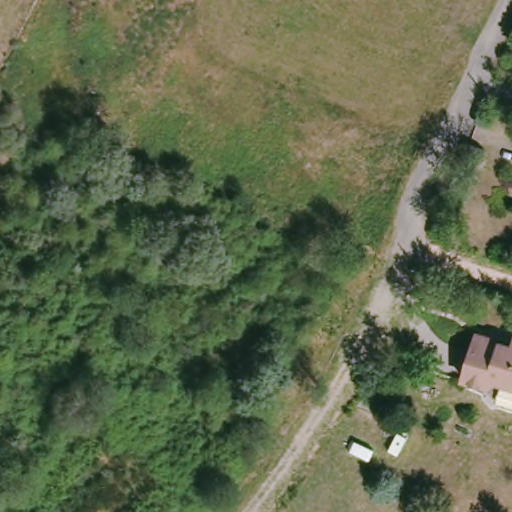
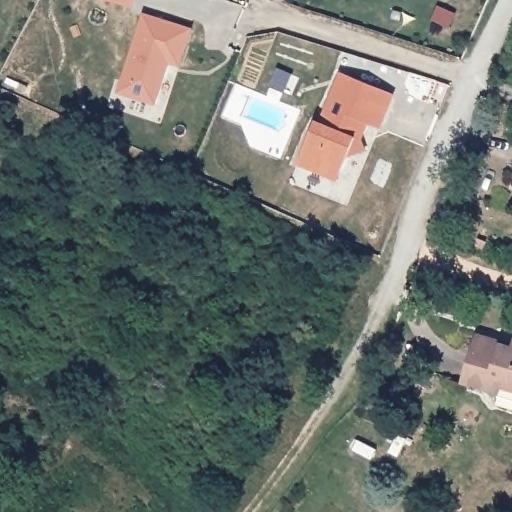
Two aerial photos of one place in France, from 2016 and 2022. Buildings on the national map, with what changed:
new [(131,6),(112,0),(133,0),(131,6)]
new [(145,14),(192,29),(181,65),(167,61),(165,70),(166,73),(157,104),(132,96),(136,85),(124,81),(145,14)]
new [(320,169),(300,160),(316,121),(321,124),(341,72),(395,94),(380,129),(368,124),(361,141),(356,139),(344,169),(331,164),(320,169)]
new [(349,155),(356,139),(361,141),(364,147),(349,155)]
unchanged [(512,348),(512,386),(491,380),(489,388),(463,381),(476,338),(512,348)]

